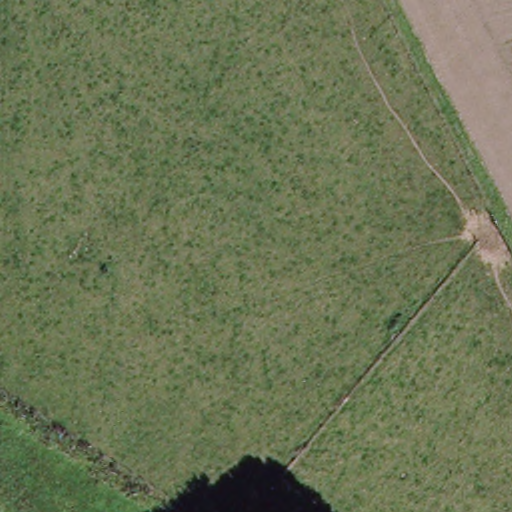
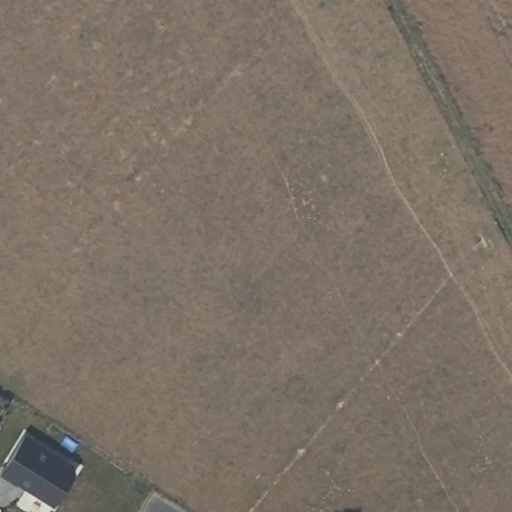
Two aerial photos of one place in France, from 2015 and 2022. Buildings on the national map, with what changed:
new [(71,460),(75,470),(54,504),(0,471),(26,433),(71,460)]

